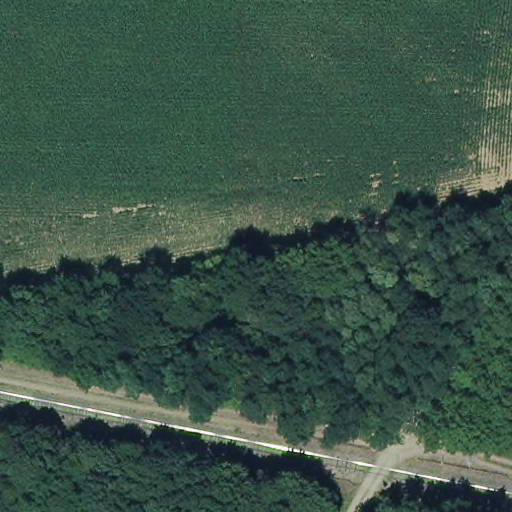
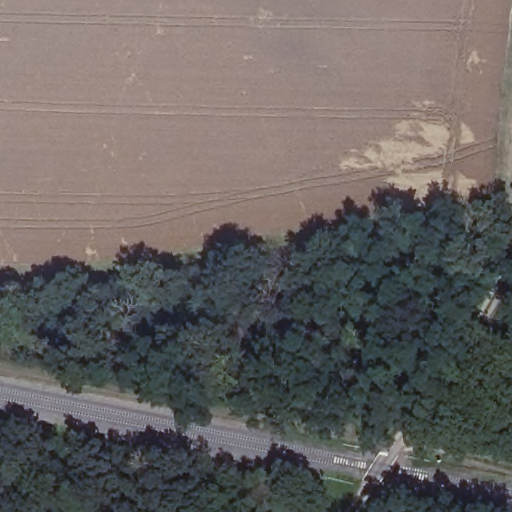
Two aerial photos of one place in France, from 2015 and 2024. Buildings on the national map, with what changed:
unchanged [(432,365),(419,385),(411,379),(424,360),(432,365)]

